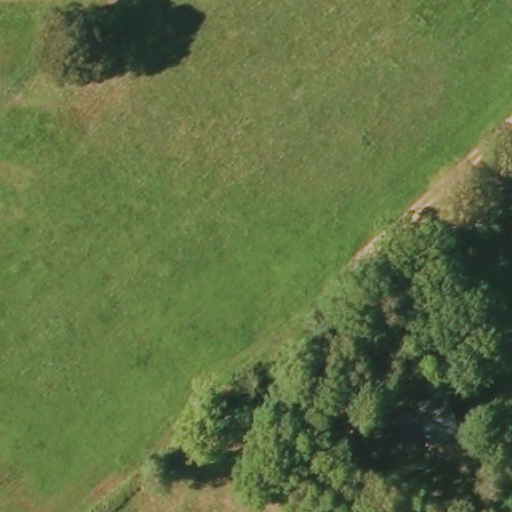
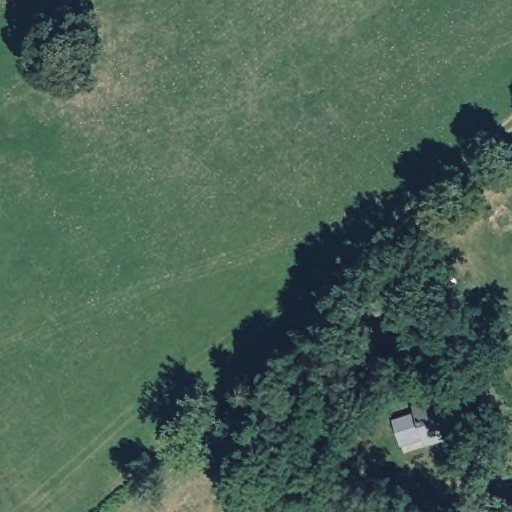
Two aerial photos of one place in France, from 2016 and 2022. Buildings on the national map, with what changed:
unchanged [(419,414),(417,405),(444,397),(456,436),(428,444),(426,436),(403,443),(396,421),(419,414)]

